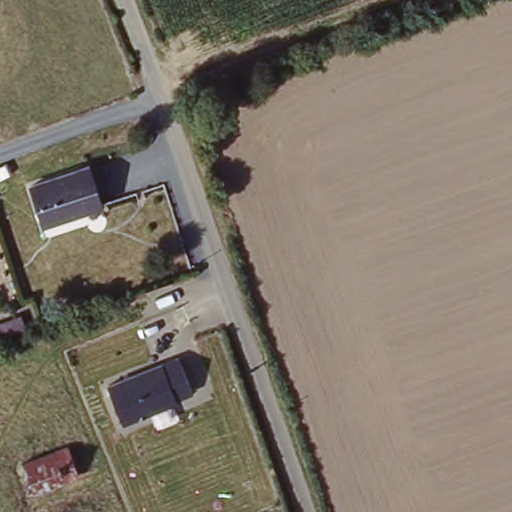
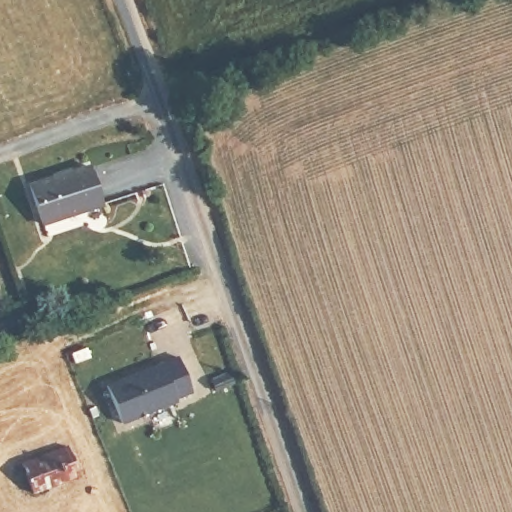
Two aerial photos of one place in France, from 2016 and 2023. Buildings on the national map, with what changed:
unchanged [(89,161),(101,199),(106,213),(45,233),(40,219),(29,180),(89,161)]
unchanged [(0,337),(0,320),(15,315),(23,329),(0,337)]
unchanged [(122,424),(105,386),(179,354),(193,392),(122,424)]
unchanged [(79,478),(31,493),(22,464),(67,448),(79,478)]

